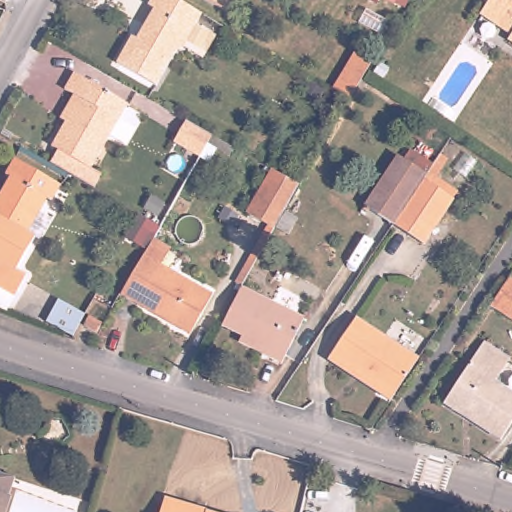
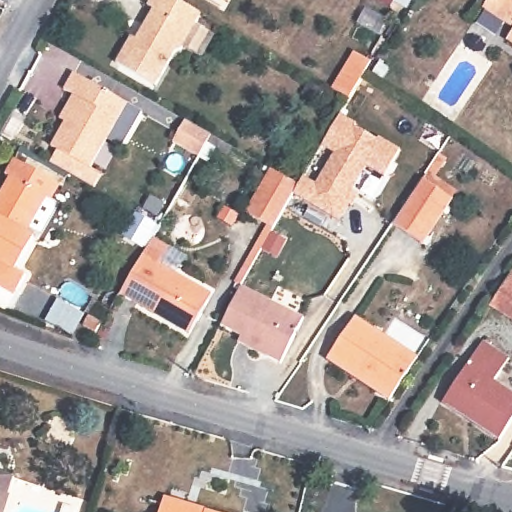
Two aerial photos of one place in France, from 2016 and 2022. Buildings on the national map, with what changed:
unchanged [(193,9),(202,14),(181,48),(173,51),(153,84),(113,60),(128,36),(135,40),(153,11),(146,6),(149,0),(177,0),(193,9)]
unchanged [(484,0),(512,0),(512,38),(507,34),(510,29),(479,8),(482,3),(484,0)]
unchanged [(332,88),(356,50),(373,61),(362,77),(349,98),(332,88)]
unchanged [(74,73),(129,105),(91,170),(52,146),(67,121),(61,118),(75,94),(66,89),(74,73)]
new [(367,166),(355,189),(360,192),(353,206),(349,204),(341,220),(293,194),(298,185),(304,176),(317,182),(334,154),(322,146),(340,114),(357,123),(356,126),(379,139),(380,138),(402,149),(385,177),(367,166)]
unchanged [(200,157),(173,141),(186,120),(212,135),(200,157)]
demolished [(422,178),(392,224),(364,205),(397,155),(425,174),(422,178)]
unchanged [(274,227),(249,213),(273,170),(298,185),(274,227)]
unchanged [(13,176),(38,190),(45,177),(54,182),(47,195),(26,233),(34,237),(16,270),(24,275),(14,293),(0,285),(0,198),(13,176)]
unchanged [(453,198),(422,243),(392,224),(422,178),(453,198)]
unchanged [(154,309),(120,289),(143,250),(150,236),(165,244),(157,258),(212,290),(192,323),(188,329),(154,309)]
unchanged [(508,277),(512,271),(512,318),(490,303),(508,277)]
unchanged [(241,334),(223,325),(241,286),(303,318),(280,363),(265,355),(238,342),(241,334)]
unchanged [(100,317),(92,313),(96,307),(103,311),(100,317)]
unchanged [(332,353),(356,317),(417,357),(389,399),(377,391),(327,359),(332,353)]
unchanged [(512,394),(512,419),(499,438),(442,401),(482,341),(508,358),(494,381),(512,394)]
unchanged [(9,492),(12,493),(6,512),(0,512),(0,474),(14,478),(9,492)]
unchanged [(195,512),(159,512),(162,502),(195,512)]
unchanged [(212,512),(204,512),(205,510),(212,512)]

